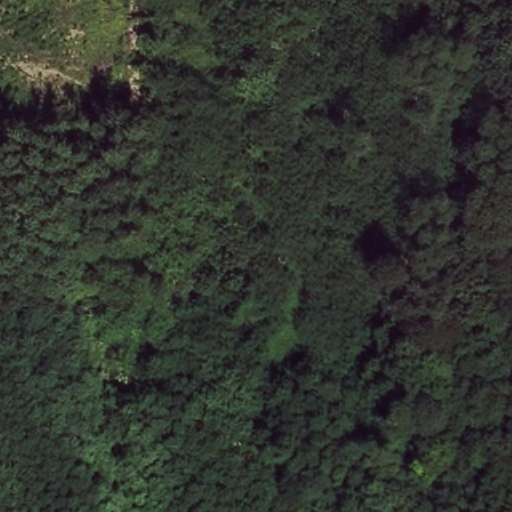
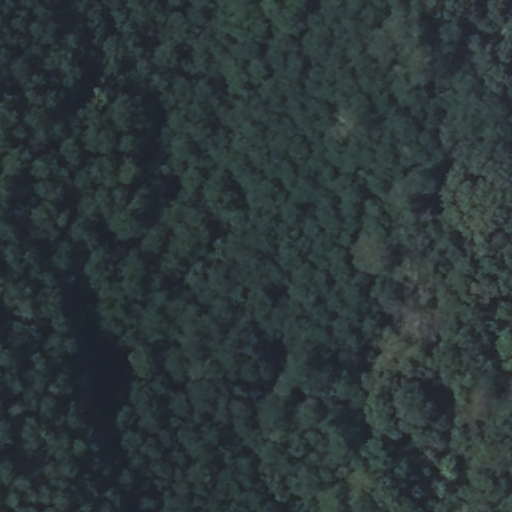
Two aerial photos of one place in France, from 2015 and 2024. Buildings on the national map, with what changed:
[]

